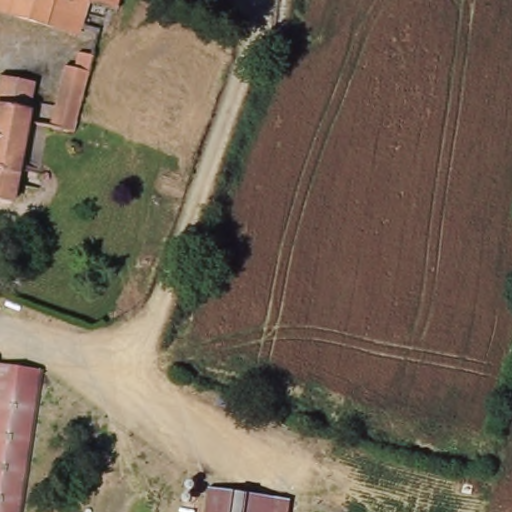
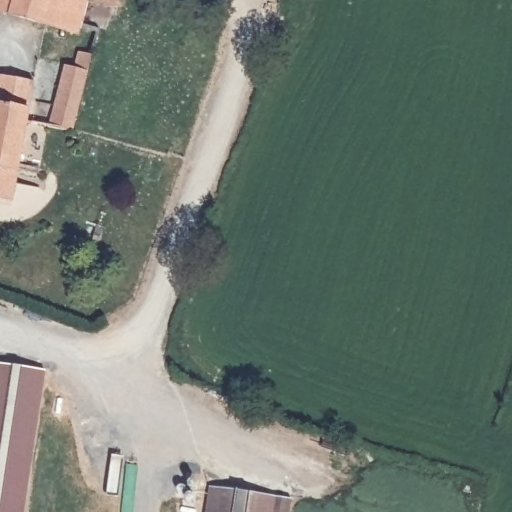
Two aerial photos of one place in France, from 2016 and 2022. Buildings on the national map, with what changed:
unchanged [(120,10),(110,41),(99,39),(84,35),(83,40),(0,15),(0,0),(118,0),(115,9),(120,10)]
unchanged [(66,69),(73,71),(79,49),(94,54),(70,135),(50,129),(66,69)]
unchanged [(20,150),(12,195),(0,193),(0,84),(29,89),(20,150)]
unchanged [(6,512),(0,512),(0,365),(30,370),(6,512)]
unchanged [(292,498),(289,512),(208,512),(213,484),(292,498)]

